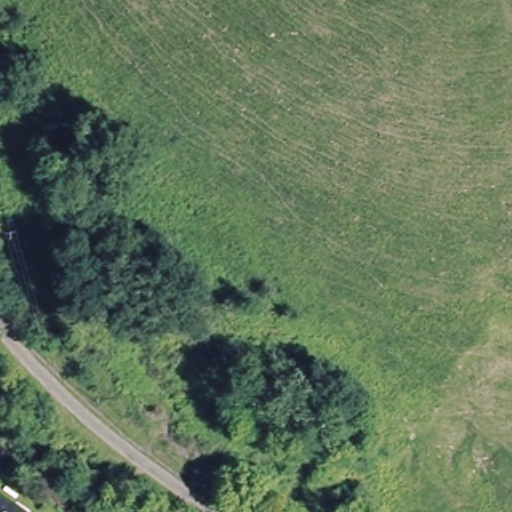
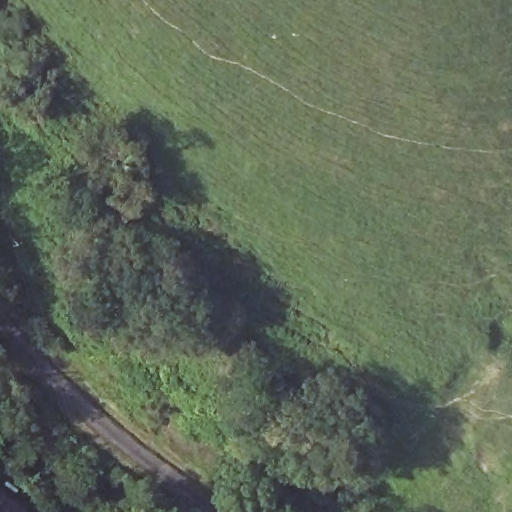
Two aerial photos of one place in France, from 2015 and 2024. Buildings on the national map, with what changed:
unchanged [(29,512),(0,512),(0,493),(29,512)]

